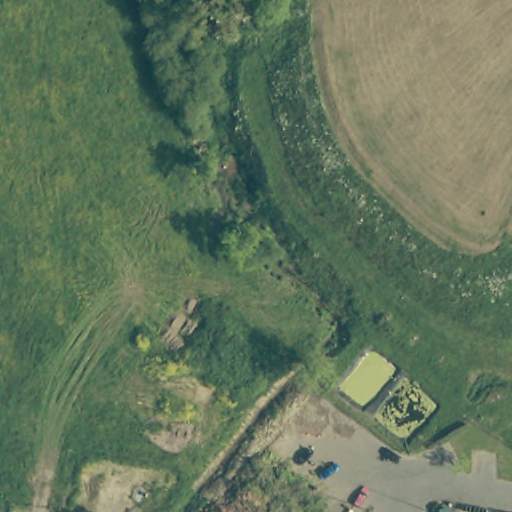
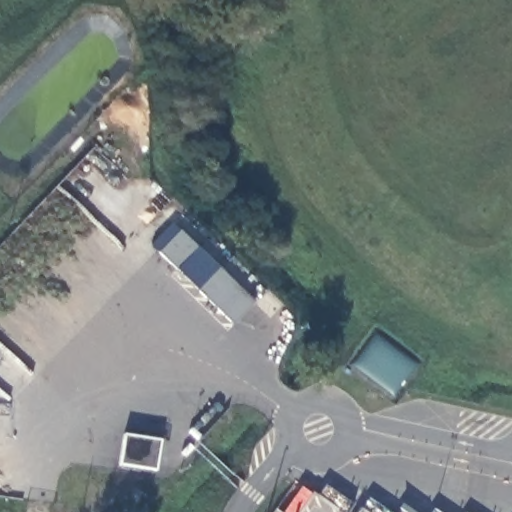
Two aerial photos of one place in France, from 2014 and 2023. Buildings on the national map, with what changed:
new [(171,224),(253,303),(233,324),(158,253),(150,245),(171,224)]
new [(156,471),(119,465),(124,434),(160,440),(156,471)]

